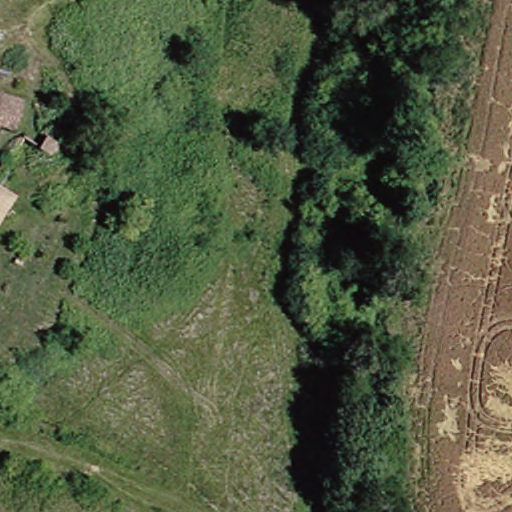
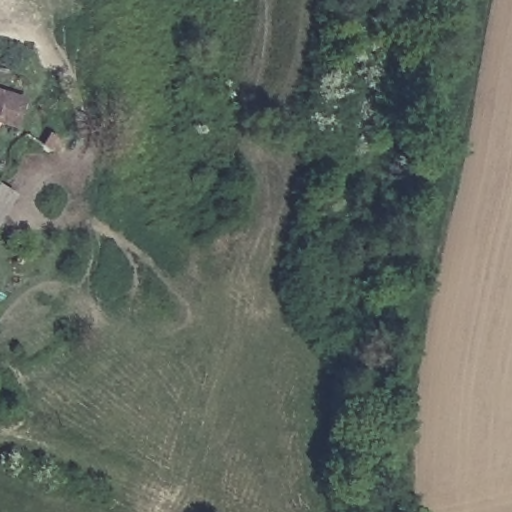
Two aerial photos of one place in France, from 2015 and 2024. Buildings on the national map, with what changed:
unchanged [(0,120),(0,93),(6,95),(27,104),(18,128),(0,120)]
unchanged [(0,226),(0,185),(20,197),(0,226)]

